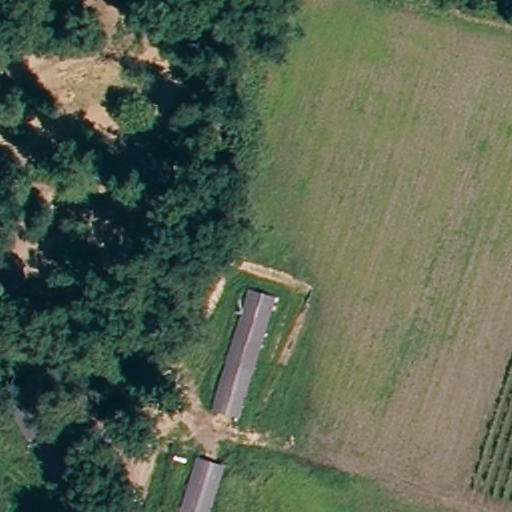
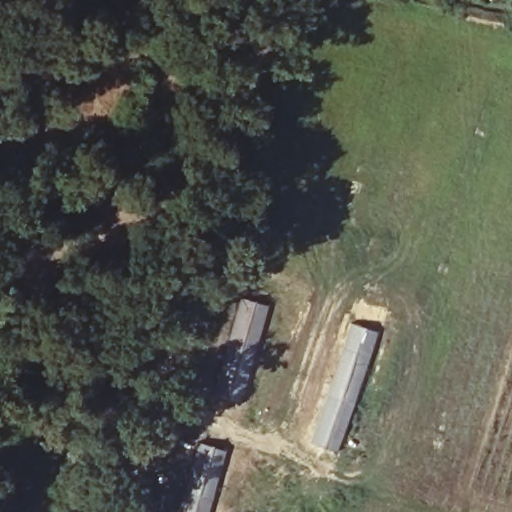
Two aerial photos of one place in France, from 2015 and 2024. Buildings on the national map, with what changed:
unchanged [(247,290),(274,300),(238,420),(210,411),(247,290)]
new [(381,336),(341,455),(312,447),(351,326),(381,336)]
unchanged [(225,465),(210,512),(180,512),(197,456),(225,465)]

